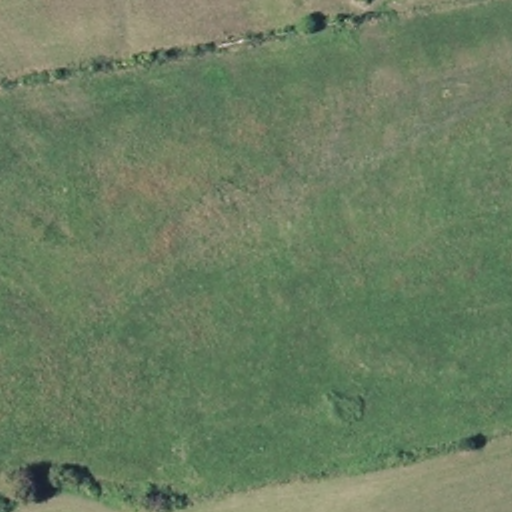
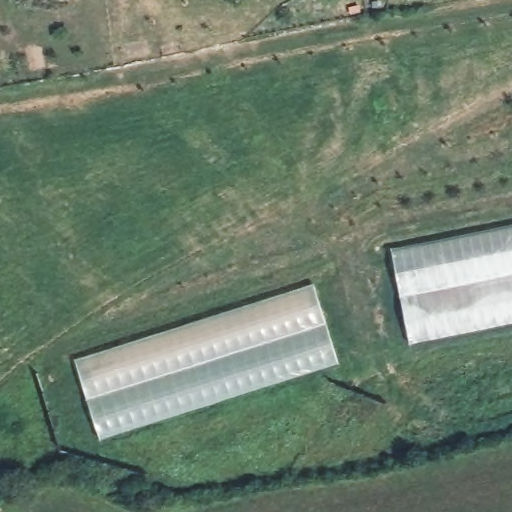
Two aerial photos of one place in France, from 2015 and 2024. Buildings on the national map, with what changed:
new [(410,346),(391,250),(512,225),(512,324),(410,346)]
new [(340,363),(100,440),(75,361),(314,284),(340,363)]

